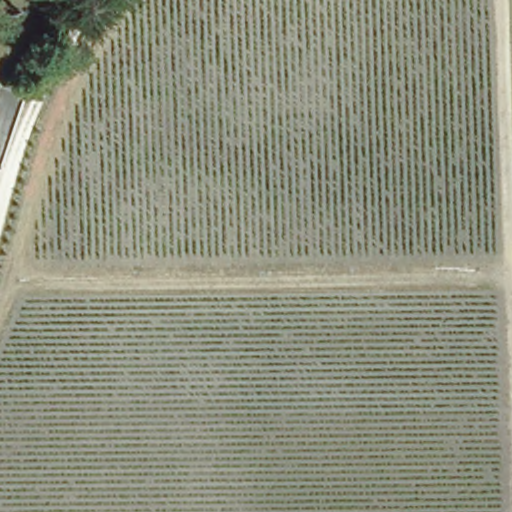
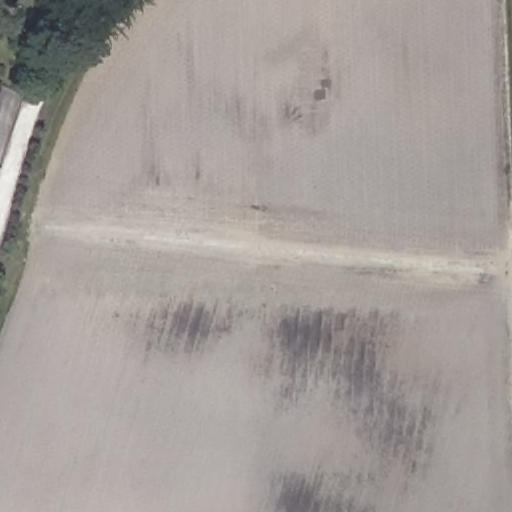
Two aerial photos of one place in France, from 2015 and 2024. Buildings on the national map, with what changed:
[]

